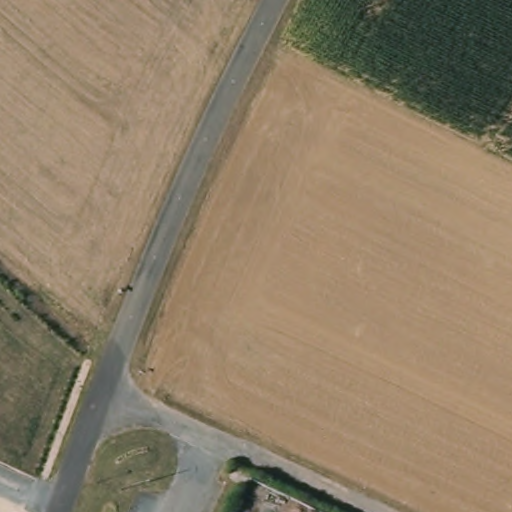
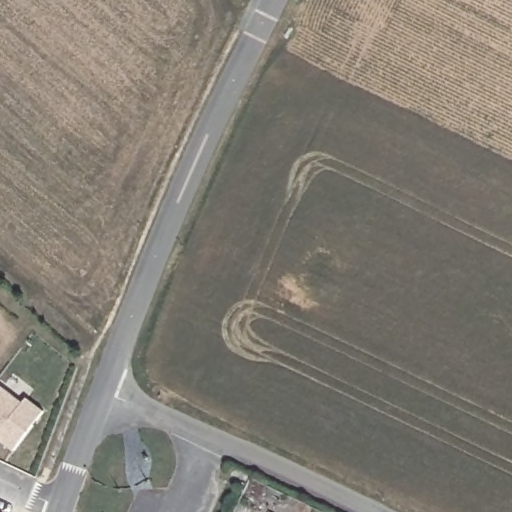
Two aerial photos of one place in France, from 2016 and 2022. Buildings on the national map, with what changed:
new [(0,441),(0,385),(23,402),(27,398),(45,411),(14,452),(0,441)]

